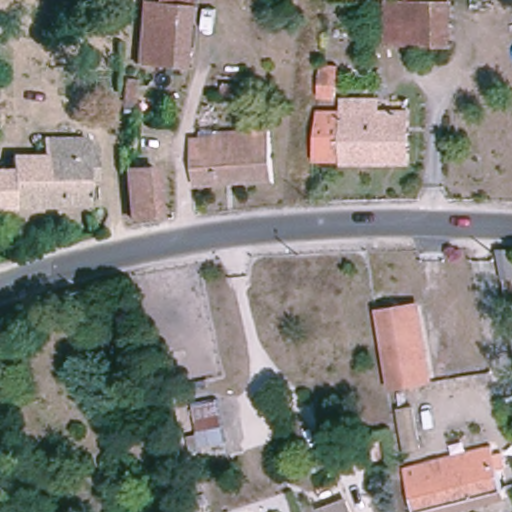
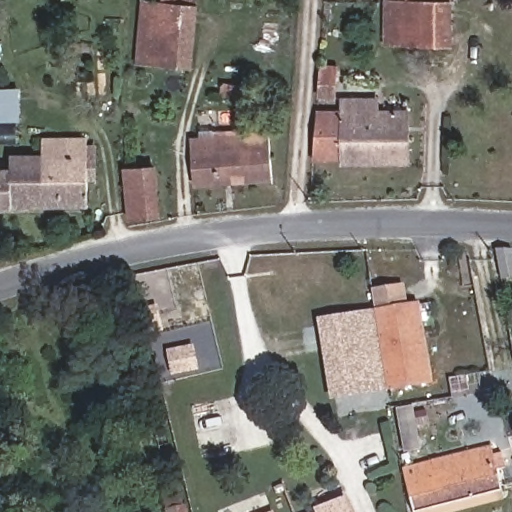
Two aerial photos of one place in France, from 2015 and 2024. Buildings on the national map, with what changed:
demolished [(107,12),(83,11),(84,0),(108,0),(107,12)]
unchanged [(184,69),(138,66),(142,0),(190,3),(184,69)]
unchanged [(452,50),(385,49),(386,0),(453,0),(452,50)]
unchanged [(336,99),(320,99),(321,70),(339,70),(336,99)]
unchanged [(140,77),(137,114),(124,112),(125,77),(140,77)]
unchanged [(245,100),(225,100),(225,84),(245,85),(245,100)]
new [(21,122),(0,121),(0,91),(20,91),(21,122)]
unchanged [(416,110),(413,171),(332,167),(336,106),(416,110)]
unchanged [(267,136),(261,189),(199,187),(200,166),(208,166),(211,132),(267,136)]
unchanged [(89,157),(93,157),(87,212),(0,208),(0,152),(41,155),(44,137),(89,141),(89,157)]
unchanged [(156,177),(155,209),(129,207),(129,178),(156,177)]
unchanged [(512,247),(512,279),(503,281),(495,249),(512,247)]
new [(318,317),(375,307),(372,289),(405,283),(409,306),(383,310),(393,387),(394,391),(331,401),(318,317)]
unchanged [(425,303),(434,380),(393,387),(383,310),(425,303)]
unchanged [(62,325),(79,398),(52,406),(36,331),(62,325)]
unchanged [(36,331),(52,406),(19,413),(4,337),(36,331)]
unchanged [(201,447),(194,406),(218,402),(225,446),(201,447)]
unchanged [(413,405),(420,450),(406,452),(397,408),(413,405)]
unchanged [(497,449),(502,492),(407,508),(402,465),(497,449)]
unchanged [(319,512),(318,508),(345,498),(351,512),(319,512)]

